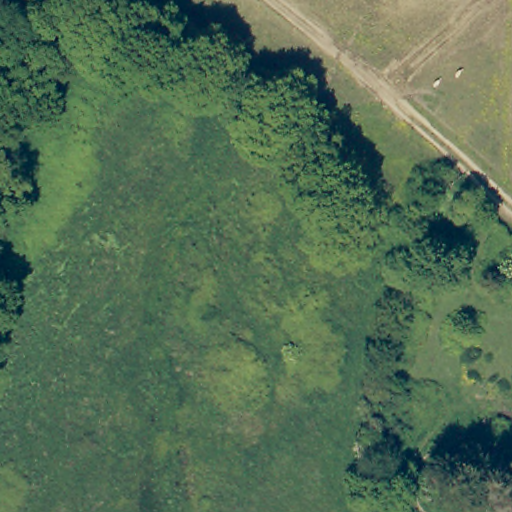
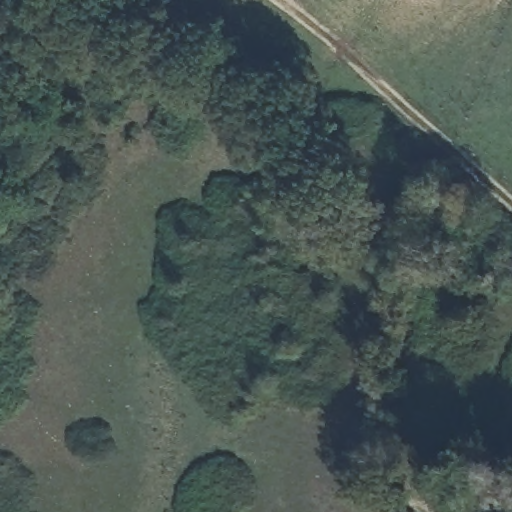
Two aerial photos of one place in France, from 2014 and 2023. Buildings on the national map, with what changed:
[]

